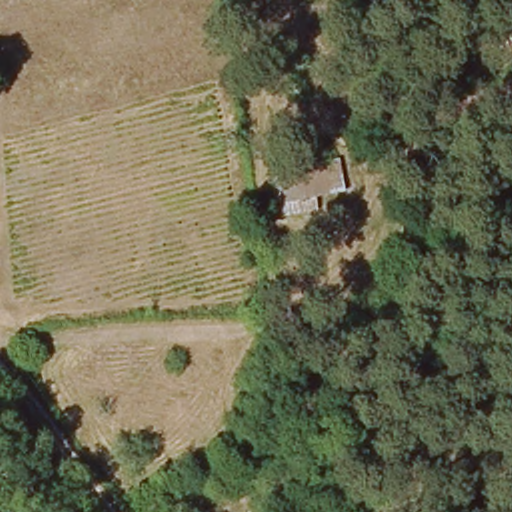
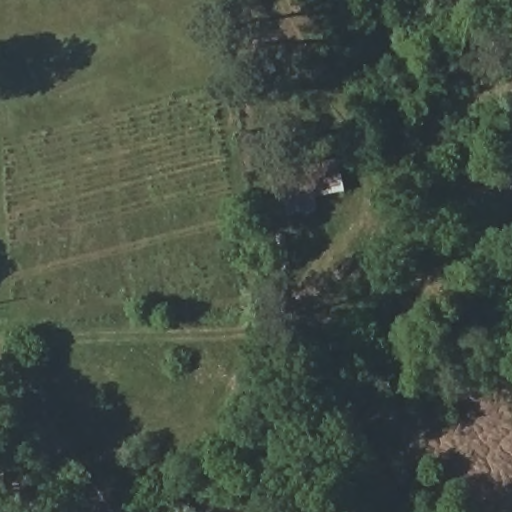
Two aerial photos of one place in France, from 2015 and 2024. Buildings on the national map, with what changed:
unchanged [(337,150),(342,190),(312,194),(315,206),(287,215),(278,162),(337,150)]

